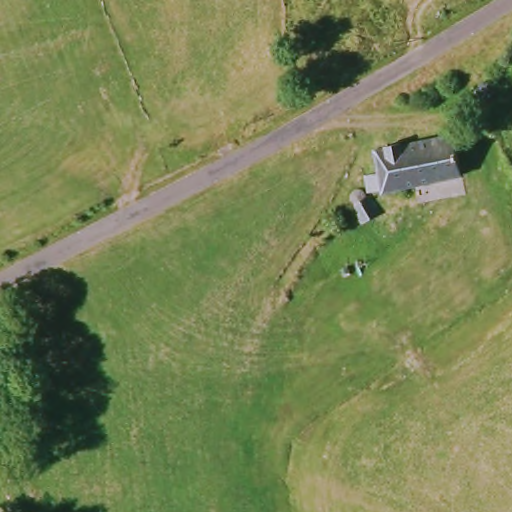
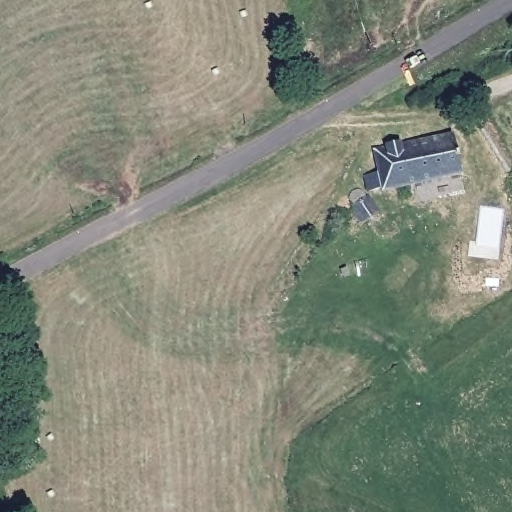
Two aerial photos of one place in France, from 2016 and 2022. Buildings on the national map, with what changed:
unchanged [(403,192),(400,186),(387,189),(383,172),(399,169),(394,146),(473,130),(482,172),(403,192)]
unchanged [(378,225),(369,204),(386,196),(396,216),(378,225)]

